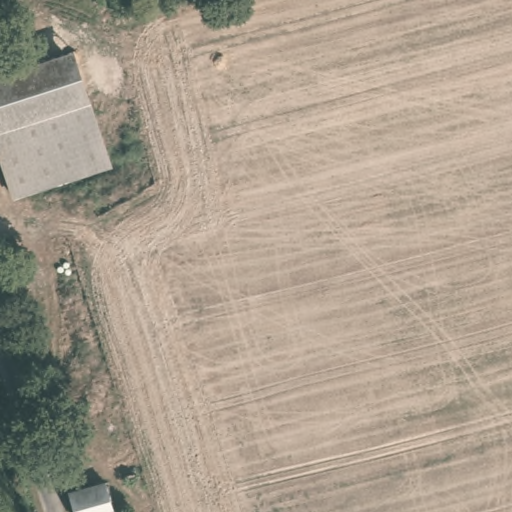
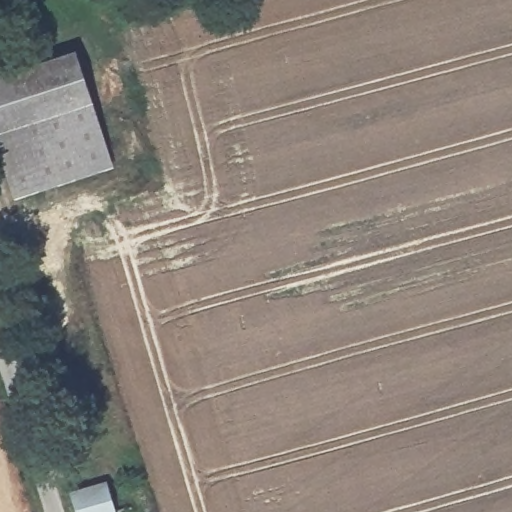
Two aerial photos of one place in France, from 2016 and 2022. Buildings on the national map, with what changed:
unchanged [(111,171),(15,201),(0,154),(0,80),(74,56),(111,171)]
unchanged [(108,512),(70,512),(65,499),(101,488),(108,512)]

